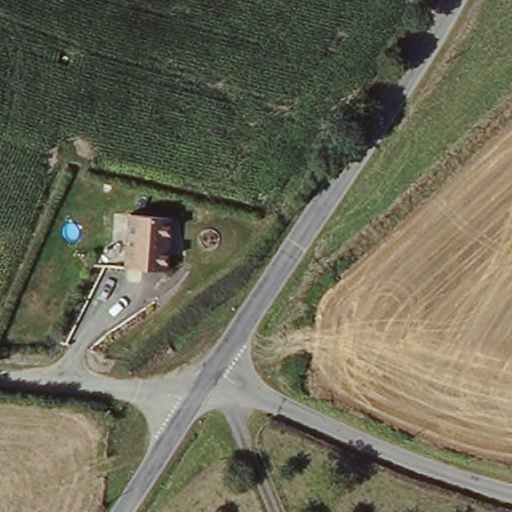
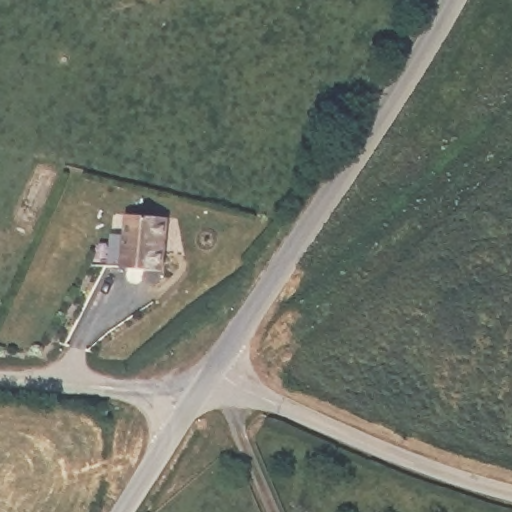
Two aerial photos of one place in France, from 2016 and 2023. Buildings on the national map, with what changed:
unchanged [(121,267),(126,215),(170,219),(165,271),(121,267)]

